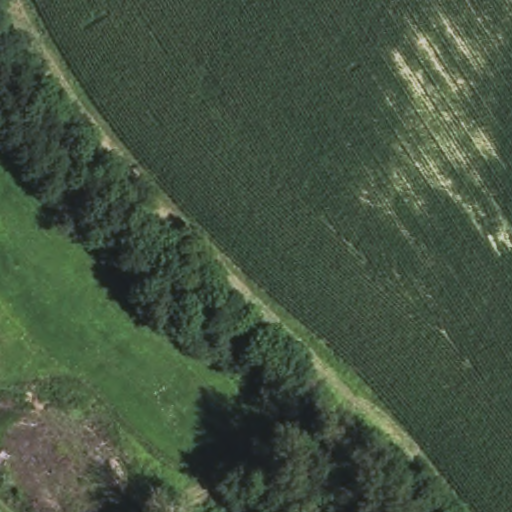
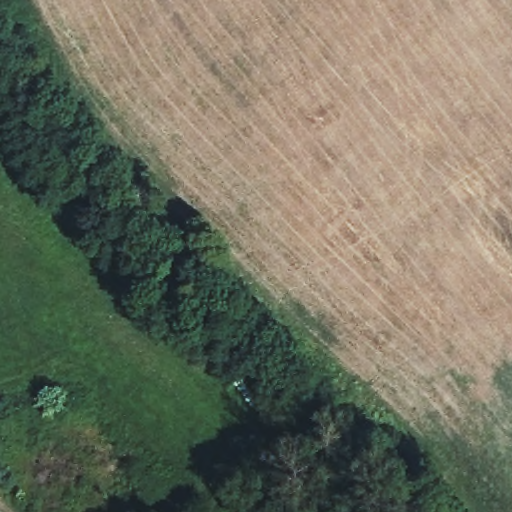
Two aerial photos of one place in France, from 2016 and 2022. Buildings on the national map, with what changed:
[]

